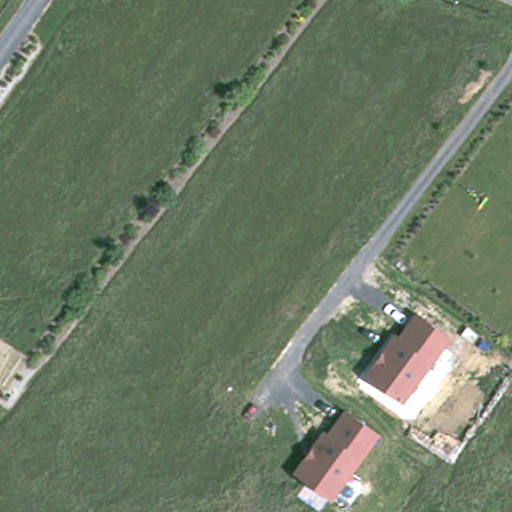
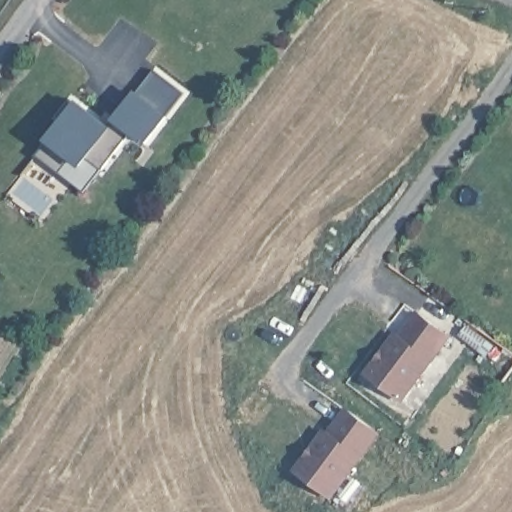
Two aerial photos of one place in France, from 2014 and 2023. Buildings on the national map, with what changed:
new [(183,94),(167,116),(145,149),(126,134),(85,193),(38,158),(45,145),(61,124),(57,121),(72,101),(75,101),(109,125),(111,122),(134,93),(152,71),(183,94)]
unchanged [(395,329),(400,332),(416,309),(451,338),(403,403),(362,373),(395,329)]
unchanged [(381,433),(330,502),(290,471),(322,425),(326,428),(342,406),(381,433)]

